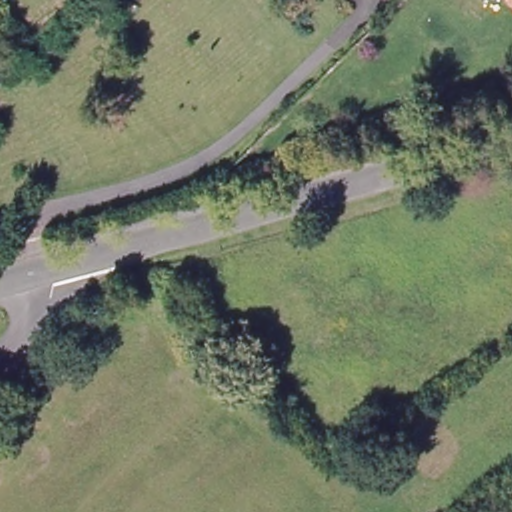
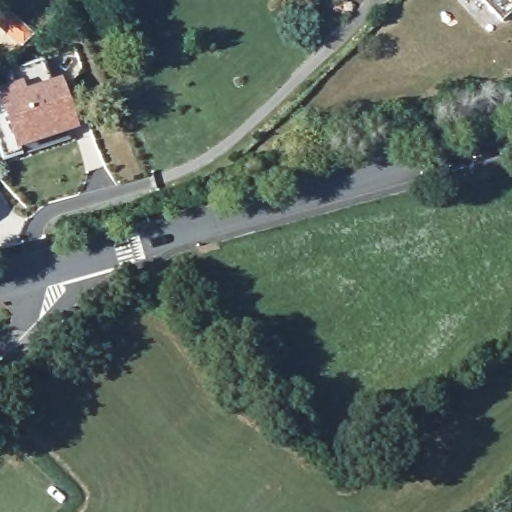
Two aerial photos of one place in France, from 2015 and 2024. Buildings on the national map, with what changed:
new [(9,71),(43,60),(53,81),(60,79),(78,130),(15,152),(0,159),(0,157),(0,89),(14,84),(9,71)]

